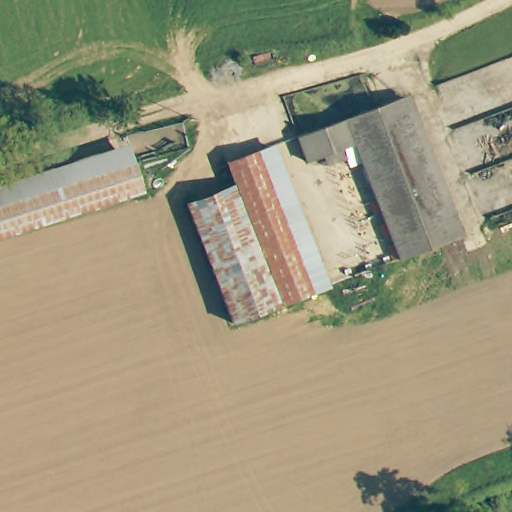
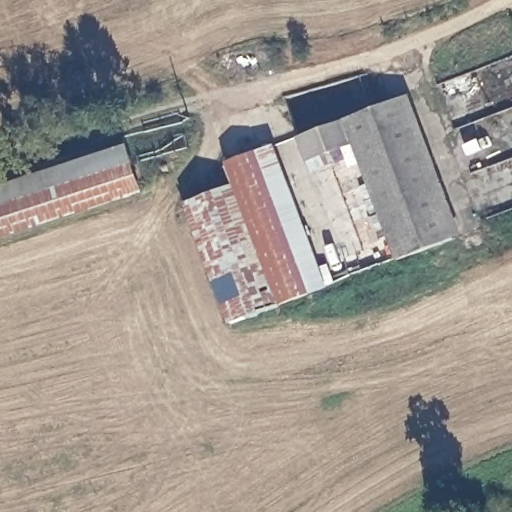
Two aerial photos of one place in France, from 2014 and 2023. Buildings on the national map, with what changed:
unchanged [(407,97),(457,239),(399,259),(359,142),(350,117),(407,97)]
unchanged [(346,146),(350,157),(330,164),(327,153),(311,159),(303,134),(350,117),(359,142),(346,146)]
unchanged [(331,289),(284,306),(235,164),(281,148),(331,289)]
unchanged [(146,187),(0,234),(0,202),(136,157),(146,187)]
unchanged [(241,186),(282,306),(234,322),(193,202),(241,186)]

